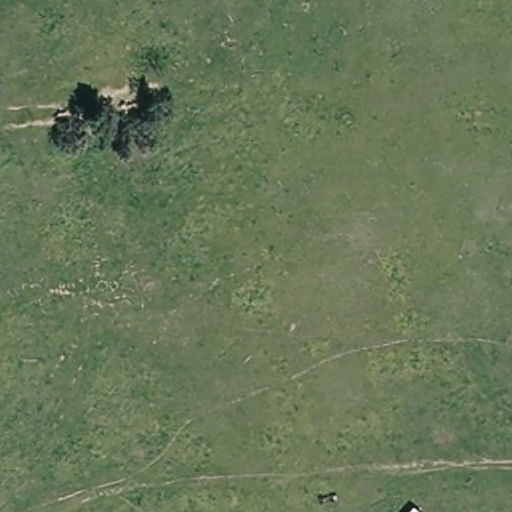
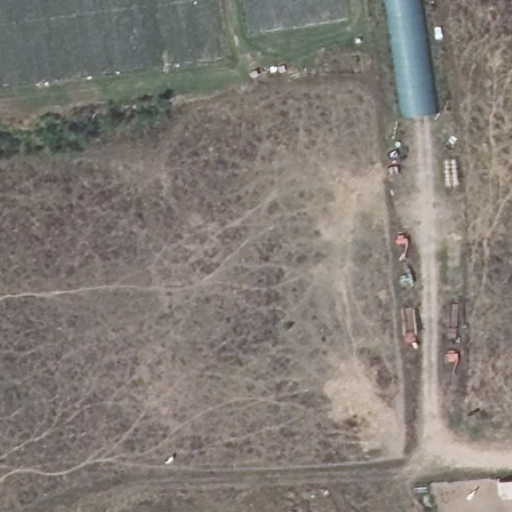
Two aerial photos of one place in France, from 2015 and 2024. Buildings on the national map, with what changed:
new [(398,111),(382,0),(417,0),(434,108),(398,111)]

